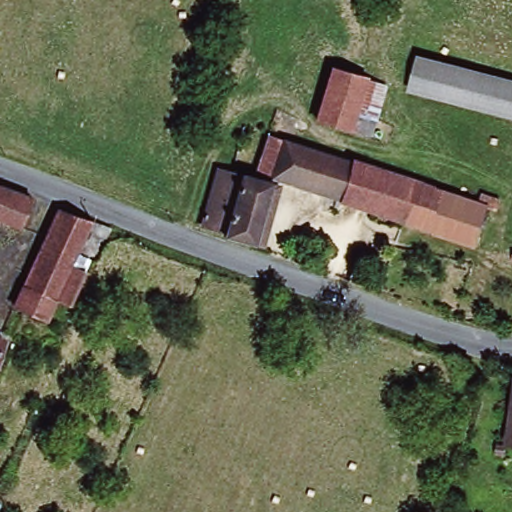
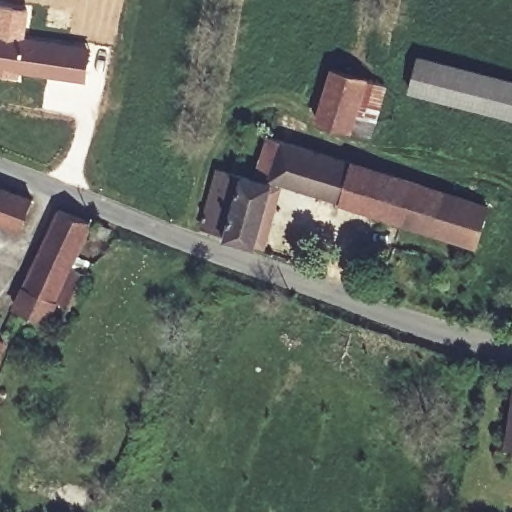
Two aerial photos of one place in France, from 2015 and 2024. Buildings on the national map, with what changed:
new [(29,8),(26,37),(90,46),(85,82),(18,72),(18,77),(0,75),(0,4),(29,8)]
unchanged [(512,79),(512,116),(410,90),(419,55),(512,79)]
unchanged [(319,124),(333,72),(367,82),(353,134),(319,124)]
unchanged [(386,87),(372,139),(353,134),(367,82),(386,87)]
unchanged [(491,207),(478,245),(255,172),(268,134),(491,207)]
unchanged [(255,244),(224,236),(225,231),(201,224),(218,167),(272,182),(255,244)]
unchanged [(35,192),(24,221),(0,212),(0,179),(35,192)]
unchanged [(12,308),(21,288),(57,212),(91,225),(55,304),(45,323),(12,308)]
unchanged [(6,342),(0,355),(0,340),(6,342)]
unchanged [(512,420),(512,438),(510,437),(512,420)]
unchanged [(508,440),(507,449),(497,447),(498,438),(508,440)]

